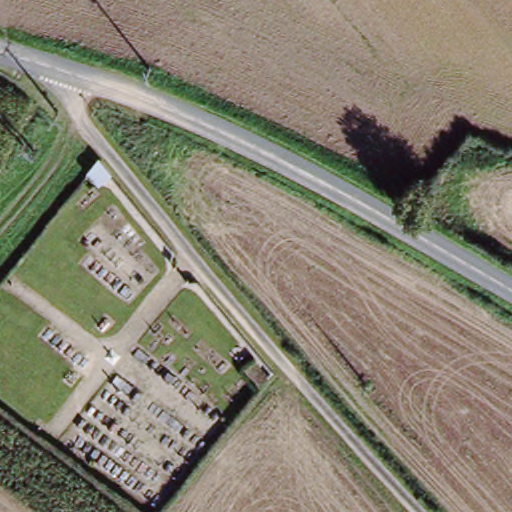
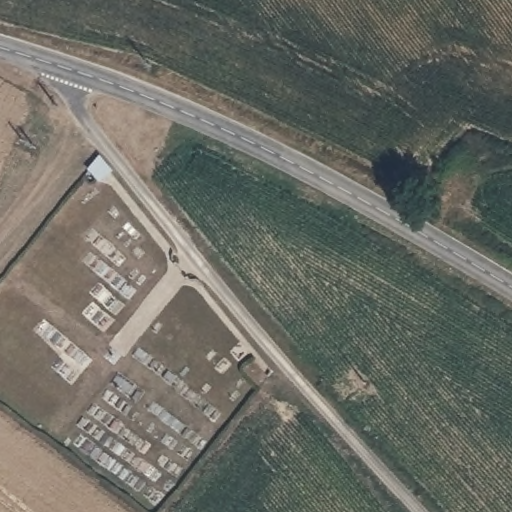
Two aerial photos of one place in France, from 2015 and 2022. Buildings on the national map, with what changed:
unchanged [(80,189),(89,177),(97,187),(89,198),(80,189)]

